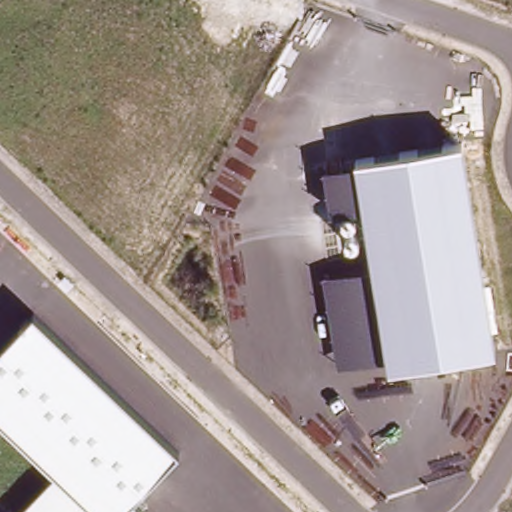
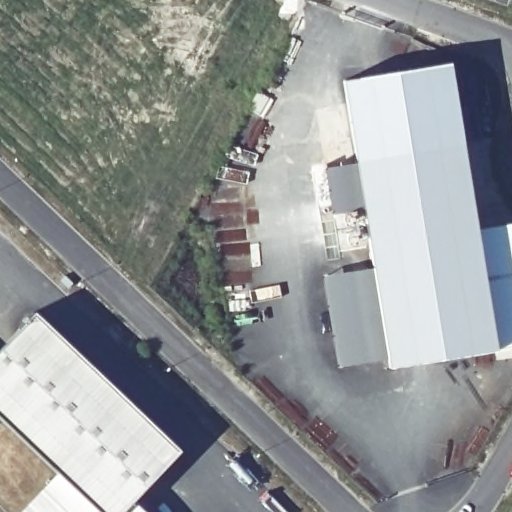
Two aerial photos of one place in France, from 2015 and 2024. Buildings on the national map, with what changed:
new [(357,159),(344,80),(449,62),(464,140),(357,159)]
unchanged [(388,353),(340,361),(327,278),(375,270),(365,207),(332,212),(325,165),(357,159),(464,140),(499,349),(391,367),(388,353)]
unchanged [(34,312),(179,449),(133,500),(146,512),(19,512),(54,475),(0,424),(0,349),(34,312)]

